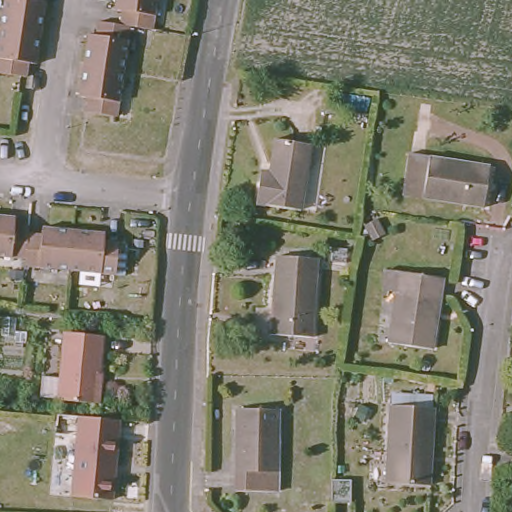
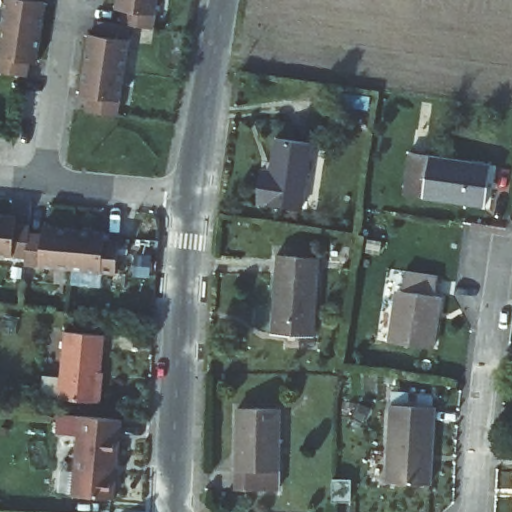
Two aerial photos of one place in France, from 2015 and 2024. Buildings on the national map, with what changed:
unchanged [(5,0),(39,0),(38,9),(45,10),(43,26),(40,43),(37,73),(28,72),(27,86),(0,82),(0,36),(5,0)]
unchanged [(132,34),(124,82),(117,125),(102,123),(83,120),(85,106),(77,105),(82,76),(87,43),(95,44),(97,29),(119,32),(120,19),(115,18),(117,0),(158,0),(152,38),(132,34)]
unchanged [(268,182),(274,148),(310,154),(300,219),(254,211),(257,191),(260,180),(268,182)]
unchanged [(482,217),(402,204),(407,161),(489,173),(482,217)]
unchanged [(45,243),(47,235),(108,242),(107,250),(122,251),(118,283),(74,278),(27,274),(28,267),(0,265),(0,223),(20,225),(19,233),(30,234),(30,242),(45,243)]
unchanged [(312,341),(270,338),(275,260),(318,263),(312,341)]
unchanged [(431,358),(389,351),(397,300),(383,298),(386,280),(442,288),(431,358)]
unchanged [(70,331),(107,335),(104,381),(106,382),(105,402),(63,398),(64,396),(47,395),(49,375),(65,377),(70,331)]
unchanged [(430,490),(385,488),(390,410),(433,412),(430,490)]
unchanged [(118,419),(112,499),(73,496),(78,415),(118,419)]
unchanged [(276,500),(235,500),(237,419),(277,419),(276,500)]
unchanged [(330,500),(330,479),(350,480),(350,501),(330,500)]

